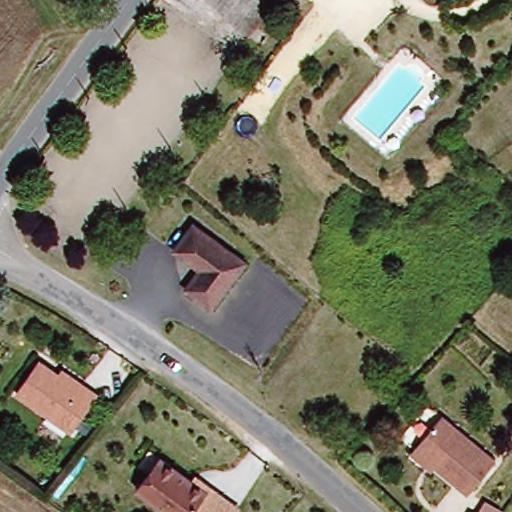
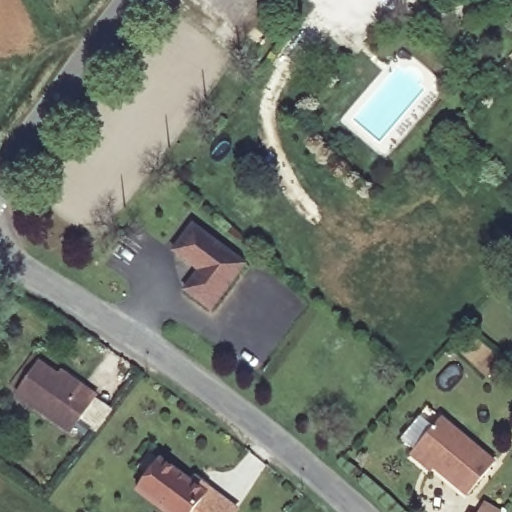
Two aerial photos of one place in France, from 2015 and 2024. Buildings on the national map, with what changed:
unchanged [(214,315),(184,293),(201,270),(179,254),(198,230),(248,267),(214,315)]
unchanged [(80,390),(83,386),(98,396),(76,431),(21,395),(40,364),(80,390)]
unchanged [(418,452),(444,417),(499,461),(473,495),(418,452)]
unchanged [(165,512),(134,490),(156,457),(189,481),(192,476),(207,488),(222,498),(212,512),(165,512)]

